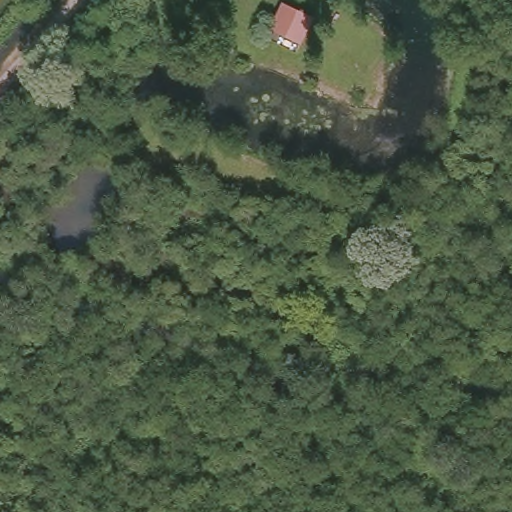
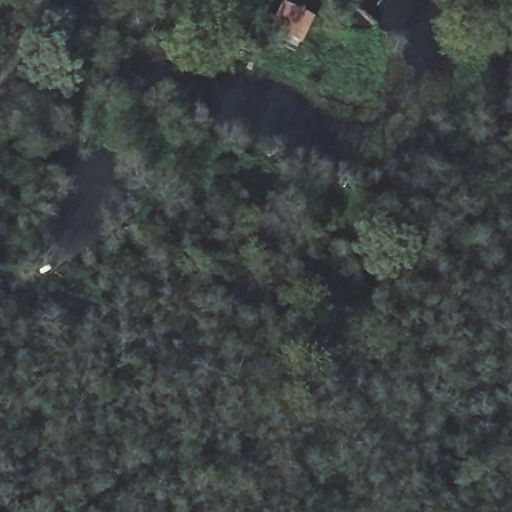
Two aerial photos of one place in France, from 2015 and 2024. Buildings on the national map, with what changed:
unchanged [(310,19),(320,29),(298,56),(287,47),(310,19)]

